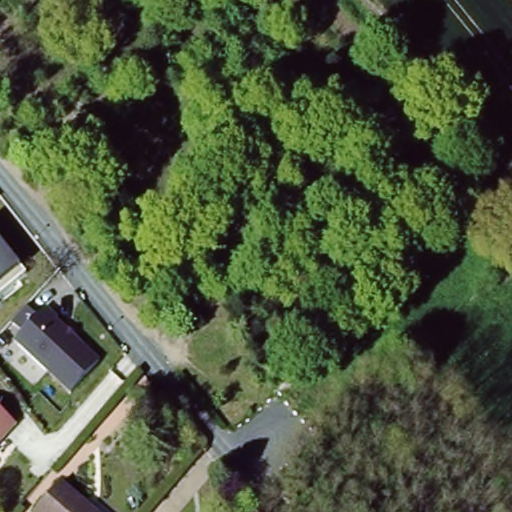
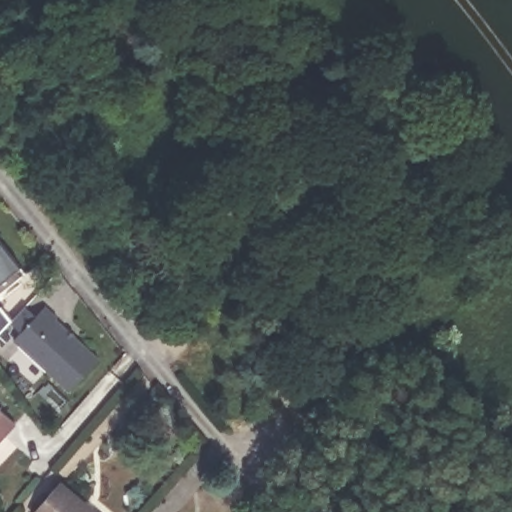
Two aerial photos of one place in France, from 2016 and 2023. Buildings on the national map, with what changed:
unchanged [(27,273),(0,292),(0,240),(20,264),(27,273)]
unchanged [(38,303),(97,360),(67,392),(9,332),(38,303)]
unchanged [(0,441),(0,409),(17,422),(0,441)]
unchanged [(34,512),(59,482),(93,512),(34,512)]

